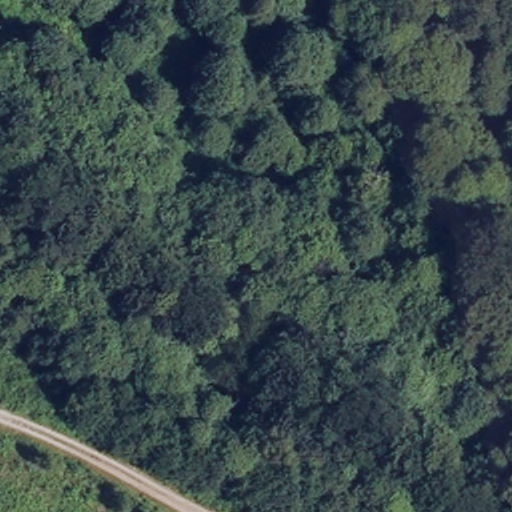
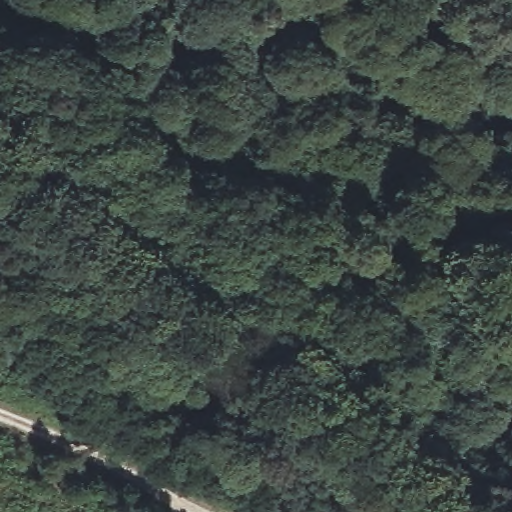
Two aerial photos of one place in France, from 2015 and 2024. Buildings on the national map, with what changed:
unchanged [(325,246),(353,209),(381,232),(353,269),(325,246)]

